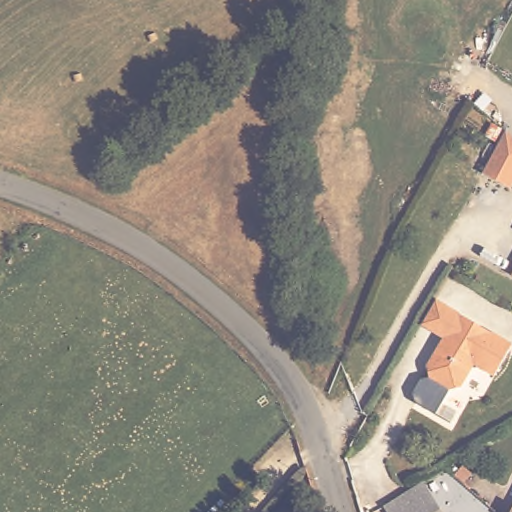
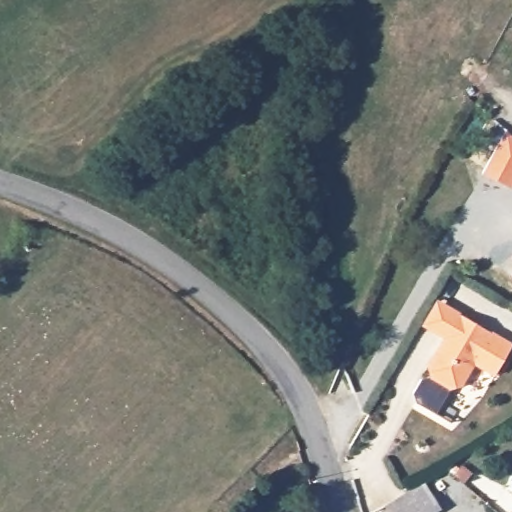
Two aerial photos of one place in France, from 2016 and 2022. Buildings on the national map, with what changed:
unchanged [(489,137),(495,125),(508,132),(512,135),(512,189),(485,175),(501,144),(489,137)]
unchanged [(478,353),(465,377),(455,380),(435,367),(433,358),(449,329),(427,317),(440,293),(462,305),(512,332),(512,344),(500,365),(478,353)]
unchanged [(432,512),(395,512),(388,501),(428,477),(445,504),(432,512)]

